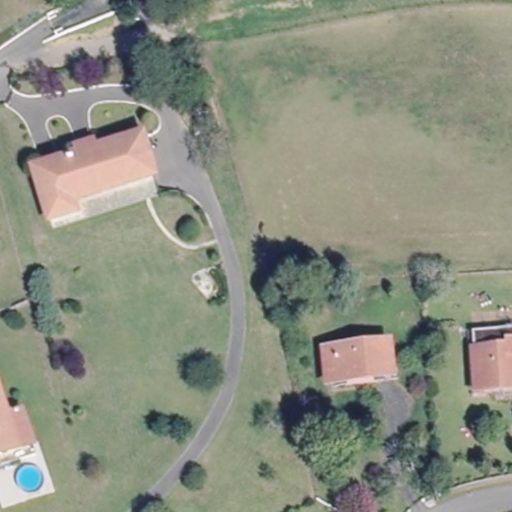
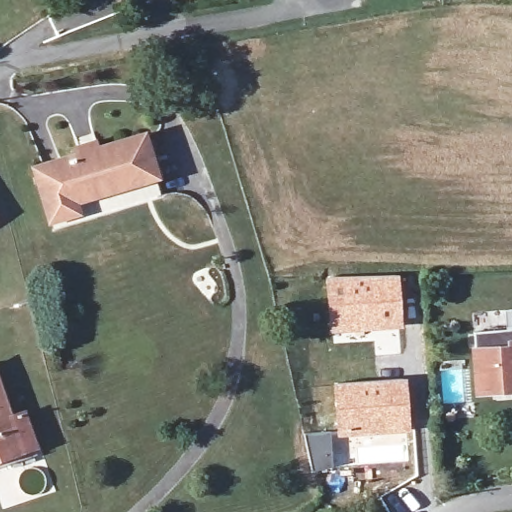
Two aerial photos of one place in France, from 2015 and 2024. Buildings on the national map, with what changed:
unchanged [(112,186),(109,176),(61,190),(67,212),(42,220),(28,170),(133,139),(145,176),(112,186)]
new [(399,274),(403,327),(329,335),(324,277),(399,274)]
unchanged [(478,397),(473,336),(512,334),(512,395),(511,395),(478,397)]
unchanged [(330,383),(326,351),(389,345),(392,376),(330,383)]
new [(407,378),(410,430),(336,437),(333,383),(407,378)]
unchanged [(8,417),(20,450),(0,458),(0,394),(8,417)]
unchanged [(8,417),(22,412),(37,455),(0,468),(0,458),(20,450),(8,417)]

